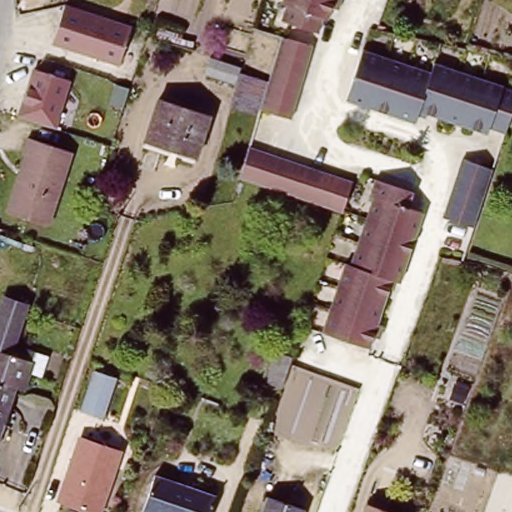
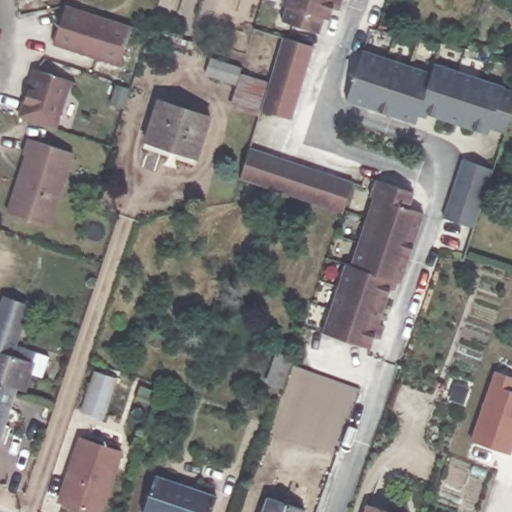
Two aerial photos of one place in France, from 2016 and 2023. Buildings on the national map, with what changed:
unchanged [(330,4),(327,15),(322,14),(317,29),(279,18),(284,1),(279,0),(338,0),(337,6),(330,4)]
unchanged [(131,26),(116,66),(51,44),(64,4),(131,26)]
unchanged [(229,102),(239,70),(263,78),(267,64),(272,49),(276,35),(307,44),(303,59),(298,73),(294,88),(289,103),(285,117),(254,108),(253,109),(229,102)]
unchanged [(406,63),(428,70),(431,60),(454,68),(478,76),(501,84),(500,85),(512,90),(512,102),(503,129),(487,124),(485,131),(462,124),(439,115),(417,109),(413,120),(390,113),(366,105),(343,98),(359,48),(383,55),(406,63)]
unchanged [(205,70),(210,54),(236,62),(239,63),(234,79),(231,79),(205,70)]
unchanged [(70,79),(55,127),(21,115),(34,66),(70,79)]
unchanged [(202,112),(190,151),(140,135),(153,96),(202,112)]
unchanged [(72,152),(48,224),(8,210),(26,154),(22,152),(27,137),(72,152)]
unchanged [(278,154),(292,159),(307,164),(321,169),(335,173),(349,178),(339,209),(325,204),(321,203),(311,199),(307,198),(296,194),(282,190),(268,185),(254,180),(238,175),(248,144),(278,154)]
unchanged [(447,200),(452,186),(457,172),(461,157),(492,167),(487,182),(483,196),(478,211),(473,225),(442,215),(447,200)]
unchanged [(408,191),(402,207),(418,212),(394,282),(387,279),(372,323),(379,325),(374,338),(368,335),(364,348),(317,331),(341,262),(346,264),(369,197),(364,194),(370,178),(408,191)]
unchanged [(27,304),(13,344),(37,353),(29,374),(18,370),(12,387),(5,384),(0,399),(0,298),(1,295),(27,304)]
unchanged [(289,364),(281,390),(266,385),(277,352),(292,357),(289,364)]
unchanged [(114,374),(101,414),(81,407),(94,368),(114,374)]
new [(469,440),(493,371),(512,376),(512,448),(510,454),(469,440)]
unchanged [(116,449),(95,511),(55,497),(76,436),(116,449)]
unchanged [(216,493),(208,512),(146,512),(142,511),(155,472),(216,493)]
unchanged [(300,509),(299,512),(257,512),(263,497),(300,509)]
unchanged [(388,512),(366,512),(368,505),(388,512)]

